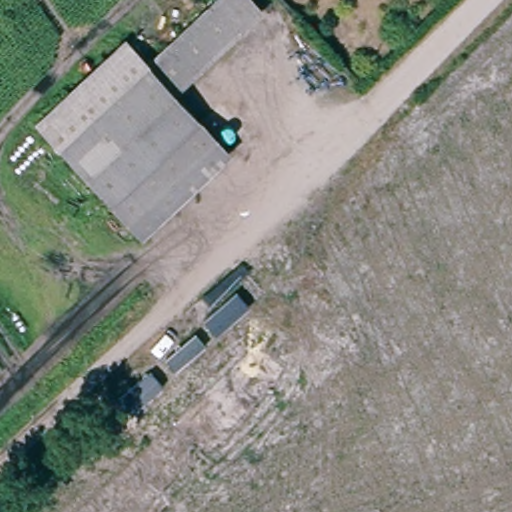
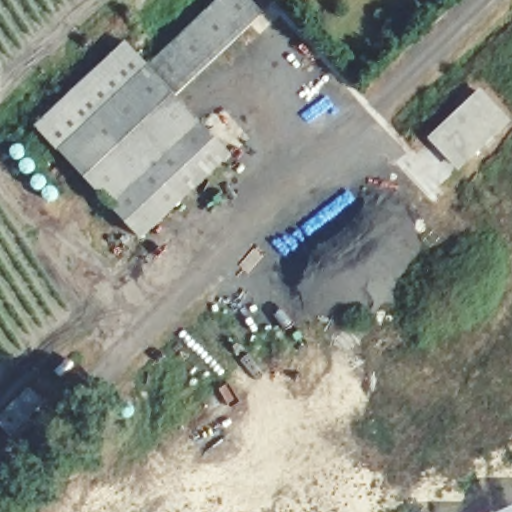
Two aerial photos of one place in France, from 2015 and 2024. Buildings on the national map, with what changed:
unchanged [(145,66),(151,61),(218,0),(247,0),(262,18),(175,98),(234,158),(141,245),(57,151),(145,66)]
unchanged [(145,66),(57,151),(37,122),(127,36),(151,61),(145,66)]
new [(480,93),(507,122),(457,169),(431,140),(480,93)]
new [(33,397),(2,427),(0,424),(0,405),(22,385),(33,397)]
new [(512,507),(512,512),(501,512),(512,507)]

